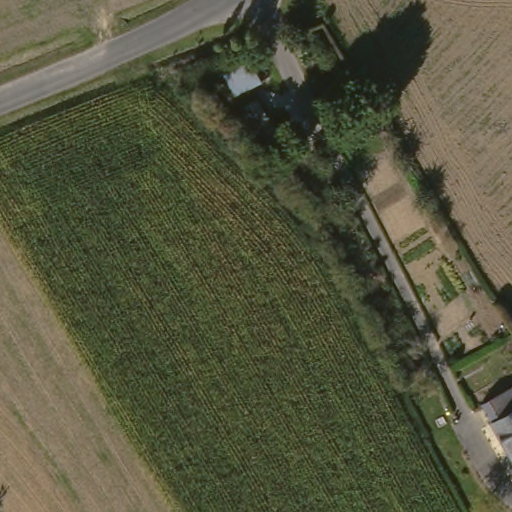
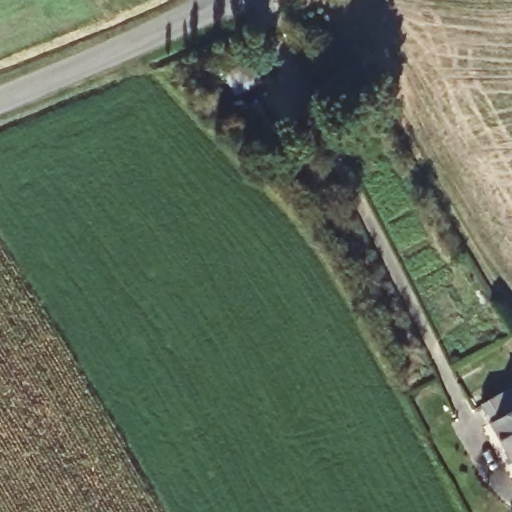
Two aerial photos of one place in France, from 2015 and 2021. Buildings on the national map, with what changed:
unchanged [(248,67),(258,87),(236,100),(224,76),(248,67)]
unchanged [(250,123),(260,111),(287,151),(267,160),(250,123)]
unchanged [(500,440),(489,420),(512,406),(512,445),(506,437),(500,440)]

